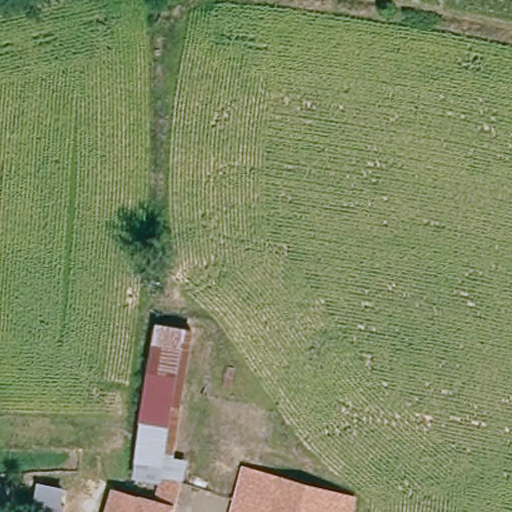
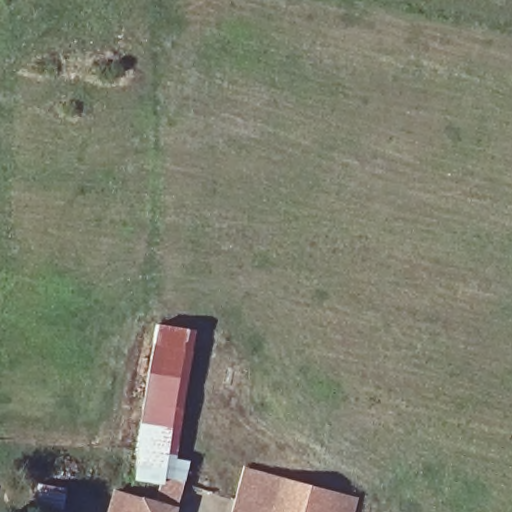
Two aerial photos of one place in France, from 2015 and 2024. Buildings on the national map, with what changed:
unchanged [(175,460),(189,460),(174,506),(155,500),(161,483),(134,479),(142,415),(156,323),(196,330),(175,460)]
unchanged [(353,512),(234,512),(244,470),(354,497),(353,512)]
unchanged [(113,490),(155,500),(174,506),(172,512),(107,512),(113,490)]

